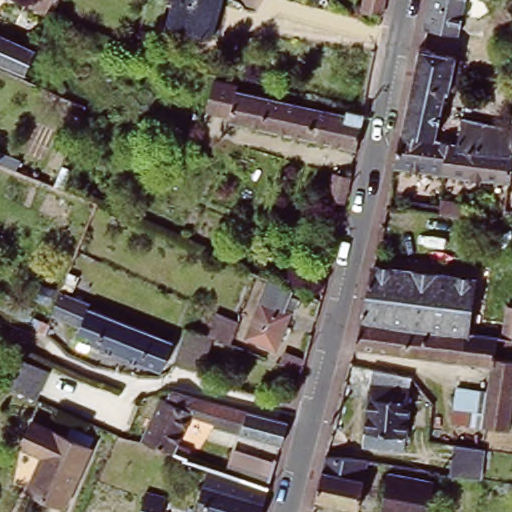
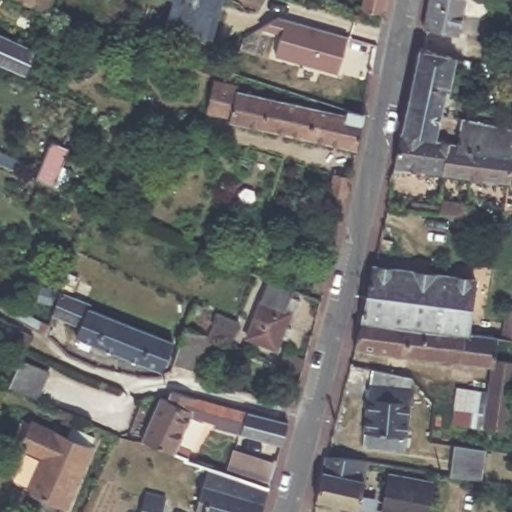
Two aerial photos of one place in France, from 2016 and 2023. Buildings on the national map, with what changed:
unchanged [(0,4),(0,0),(49,0),(47,14),(0,4)]
unchanged [(223,0),(211,39),(167,28),(175,0),(223,0)]
unchanged [(385,0),(382,16),(363,11),(365,0),(385,0)]
unchanged [(427,0),(463,0),(456,34),(421,26),(427,0)]
new [(337,75),(275,57),(281,35),(259,30),(278,18),(348,39),(337,75)]
unchanged [(25,74),(0,63),(0,34),(37,50),(25,74)]
unchanged [(400,130),(417,48),(455,58),(447,93),(444,92),(439,113),(460,118),(460,119),(511,130),(512,126),(512,145),(510,145),(508,154),(400,130)]
unchanged [(225,118),(203,112),(208,82),(232,87),(231,92),(340,116),(341,113),(347,114),(347,116),(357,119),(350,151),(225,121),(225,118)]
unchanged [(511,170),(508,181),(393,166),(400,130),(508,154),(512,155),(512,170),(511,170)]
new [(48,149),(67,156),(53,189),(35,182),(48,149)]
unchanged [(332,177),(349,180),(343,205),(326,201),(332,177)]
unchanged [(319,263),(330,265),(325,285),(315,283),(319,263)]
unchanged [(361,325),(373,270),(375,270),(485,285),(483,295),(472,294),(468,315),(512,321),(512,344),(496,342),(361,325)]
unchanged [(46,311),(55,289),(57,290),(87,301),(85,306),(168,339),(157,367),(72,334),(77,323),(50,312),(46,311)]
unchanged [(270,345),(242,333),(256,298),(285,310),(270,345)]
unchanged [(169,360),(180,323),(207,334),(195,369),(169,360)]
unchanged [(4,336),(5,335),(10,325),(33,338),(26,349),(4,336)]
unchanged [(512,364),(512,394),(506,434),(483,431),(492,370),(355,351),(361,325),(496,342),(493,362),(512,364)]
unchanged [(285,354),(305,361),(302,375),(280,366),(285,354)]
unchanged [(6,390),(17,365),(42,376),(32,402),(6,390)]
unchanged [(403,395),(400,411),(405,412),(398,461),(356,455),(365,390),(403,395)]
unchanged [(153,400),(155,392),(182,400),(227,413),(272,424),(265,445),(197,426),(196,423),(175,417),(162,444),(173,450),(169,460),(127,442),(147,397),(153,400)]
unchanged [(68,512),(59,512),(30,500),(42,464),(18,452),(25,424),(95,444),(68,512)]
unchanged [(445,478),(450,448),(480,452),(476,482),(445,478)]
unchanged [(311,453),(353,458),(344,505),(301,496),(311,453)]
unchanged [(203,474),(231,484),(237,458),(270,467),(262,494),(257,512),(192,512),(203,474)]
unchanged [(429,512),(381,512),(388,475),(434,483),(429,512)]
unchanged [(141,504),(160,509),(159,512),(138,512),(141,504)]

